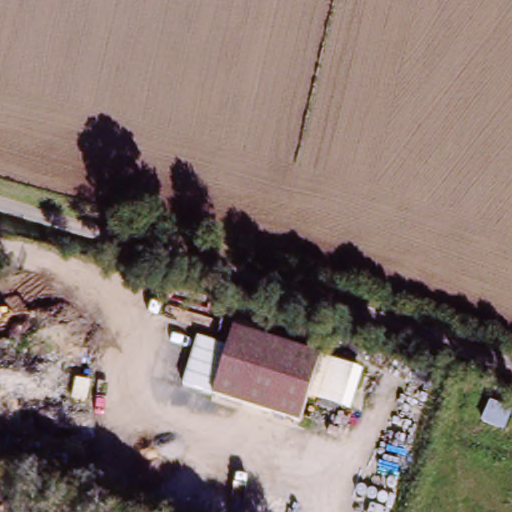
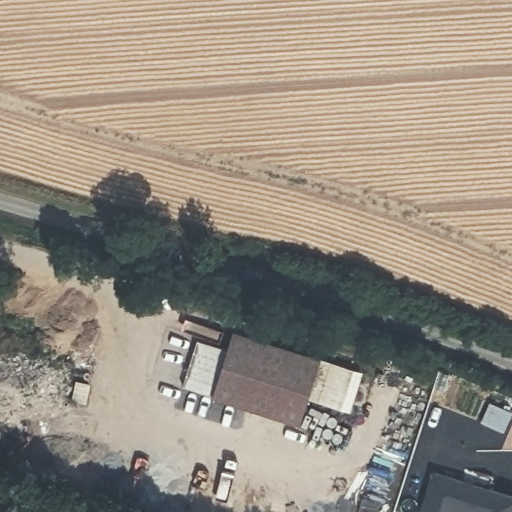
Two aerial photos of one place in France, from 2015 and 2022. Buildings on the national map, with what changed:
unchanged [(343,407),(323,400),(321,400),(310,396),(301,423),(214,396),(235,331),(323,358),(333,361),(336,361),(357,368),(343,407)]
new [(512,512),(467,512),(457,510),(457,512),(420,512),(432,470),(512,494),(512,512)]

